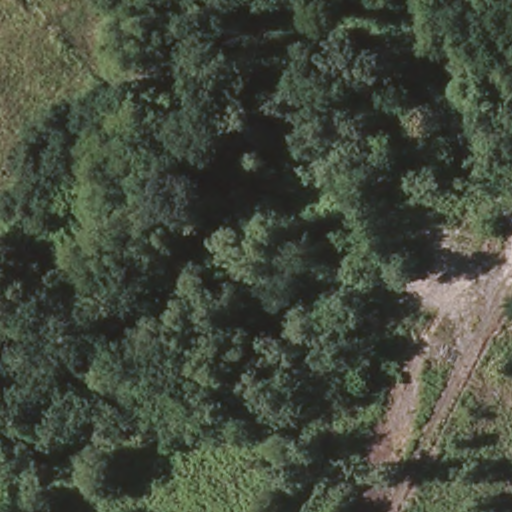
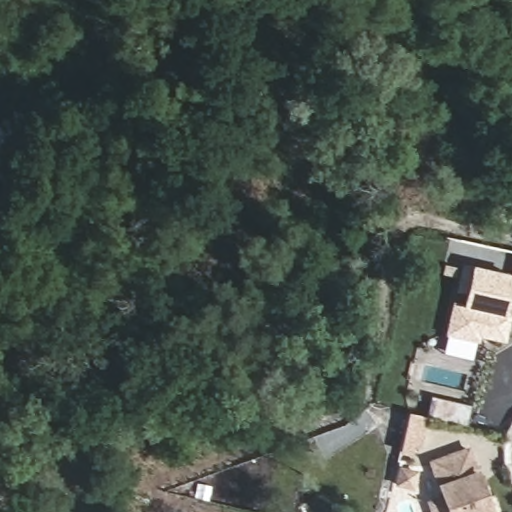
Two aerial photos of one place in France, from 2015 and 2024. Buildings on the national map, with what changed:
new [(504,342),(479,336),(478,342),(445,335),(462,264),(470,266),(470,265),(512,274),(512,285),(505,313),(511,314),(504,342)]
new [(426,502),(442,496),(438,484),(428,461),(469,447),(478,469),(494,512),(430,512),(426,502)]

